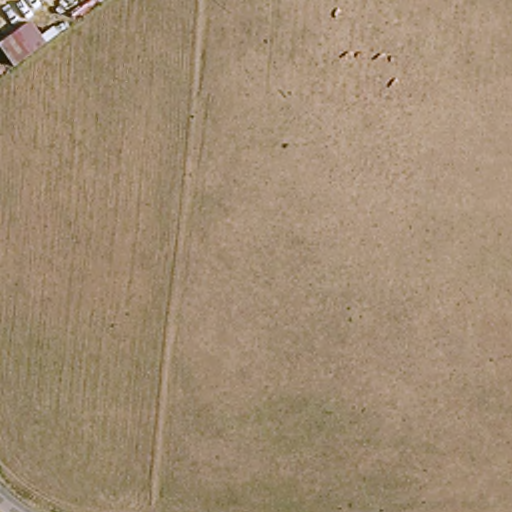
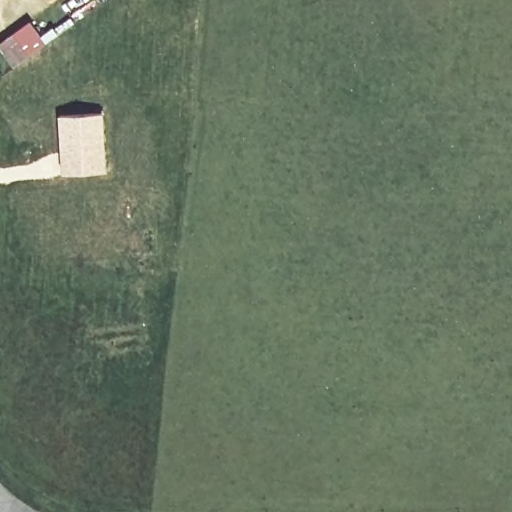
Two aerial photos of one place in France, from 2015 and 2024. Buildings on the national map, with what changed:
unchanged [(47,0),(55,0),(50,4),(47,0)]
new [(38,38),(51,31),(55,35),(42,45),(25,56),(10,67),(0,52),(0,43),(11,37),(29,24),(38,38)]
new [(102,111),(105,170),(60,172),(56,114),(102,111)]

